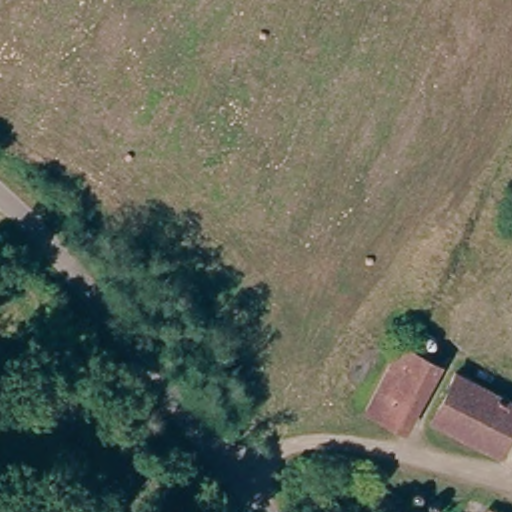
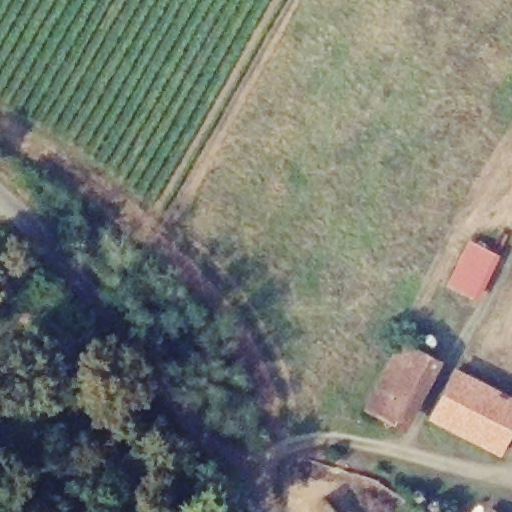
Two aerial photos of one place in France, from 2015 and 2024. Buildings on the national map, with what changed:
new [(467,244),(498,260),(478,301),(446,286),(467,244)]
unchanged [(438,360),(405,425),(374,409),(407,344),(419,350),(438,360)]
unchanged [(512,420),(495,449),(433,415),(458,370),(512,400),(512,420)]
unchanged [(341,512),(309,512),(326,496),(341,512)]
unchanged [(512,507),(512,512),(492,512),(500,501),(512,507)]
unchanged [(372,512),(356,512),(364,503),(372,512)]

